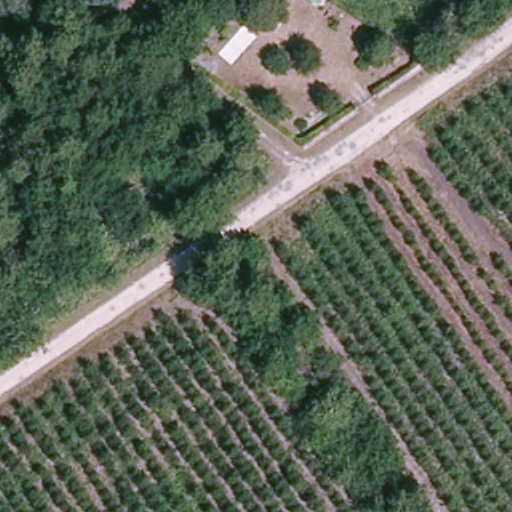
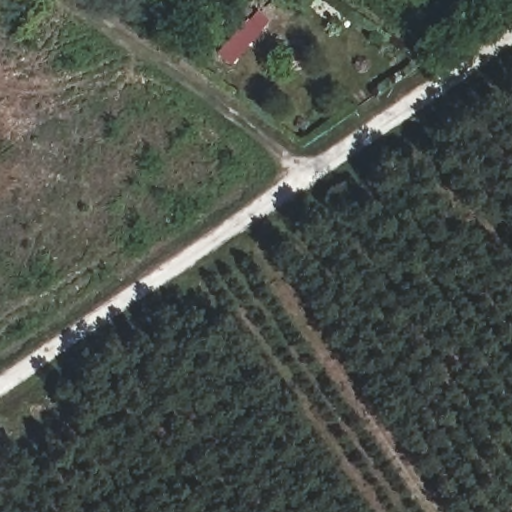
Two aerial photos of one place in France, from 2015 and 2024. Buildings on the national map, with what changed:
unchanged [(310,0),(324,0),(320,6),(310,0)]

